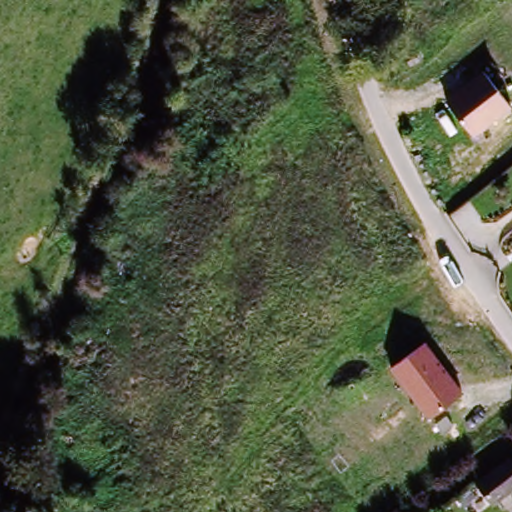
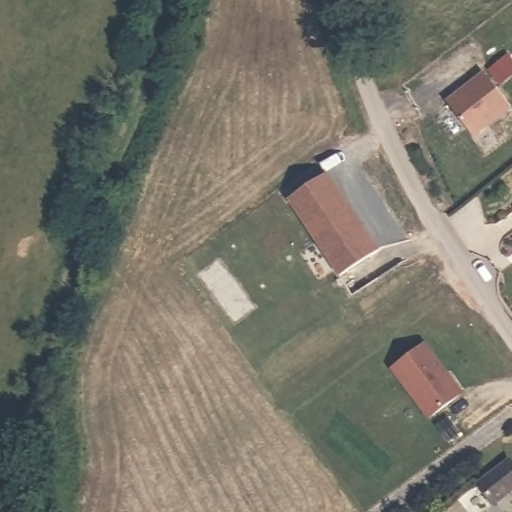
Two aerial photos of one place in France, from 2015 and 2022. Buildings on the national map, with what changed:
unchanged [(445,100),(483,72),(512,108),(512,111),(476,136),(445,100)]
new [(380,249),(340,276),(287,201),(328,173),(380,249)]
unchanged [(390,369),(425,344),(463,393),(429,420),(390,369)]
unchanged [(512,464),(512,495),(496,505),(482,482),(512,464)]

